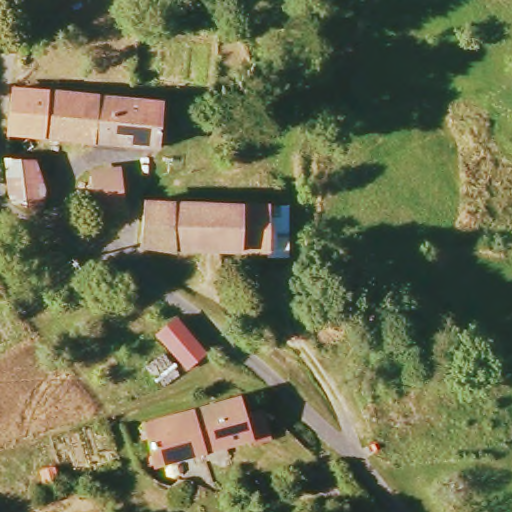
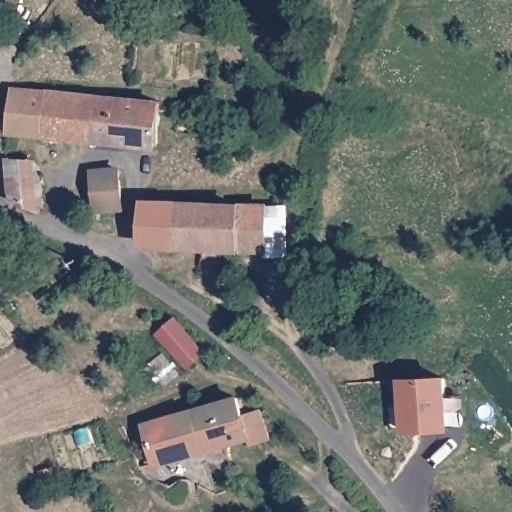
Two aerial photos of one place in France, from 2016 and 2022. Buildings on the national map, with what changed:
unchanged [(11,4),(0,5),(0,0),(11,0),(11,4)]
unchanged [(113,100),(104,144),(21,137),(20,89),(113,100)]
unchanged [(175,105),(173,117),(168,150),(104,144),(113,100),(142,103),(175,105)]
unchanged [(11,201),(8,165),(40,165),(39,176),(33,180),(42,210),(11,201)]
unchanged [(103,176),(126,175),(127,215),(104,215),(103,176)]
unchanged [(279,268),(278,250),(147,252),(146,242),(146,223),(146,216),(164,217),(265,210),(276,210),(289,209),(294,265),(279,268)]
unchanged [(156,338),(178,319),(213,354),(193,373),(156,338)]
new [(449,375),(451,429),(403,430),(400,377),(449,375)]
unchanged [(160,466),(152,450),(139,450),(138,441),(150,436),(144,425),(241,400),(259,437),(160,466)]

